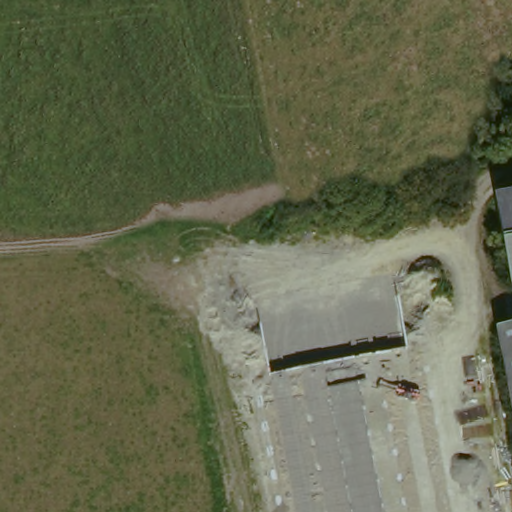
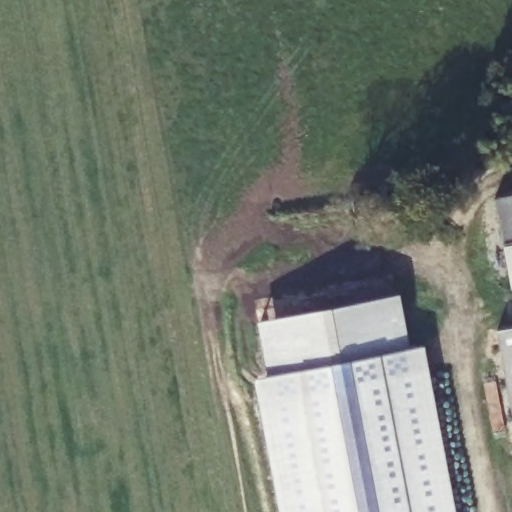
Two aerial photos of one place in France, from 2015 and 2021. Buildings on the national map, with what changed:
unchanged [(498,192),(512,190),(512,284),(511,285),(498,192)]
new [(268,376),(258,322),(400,292),(411,348),(424,346),(456,512),(279,512),(254,380),(268,376)]
unchanged [(512,324),(512,412),(500,326),(512,324)]

